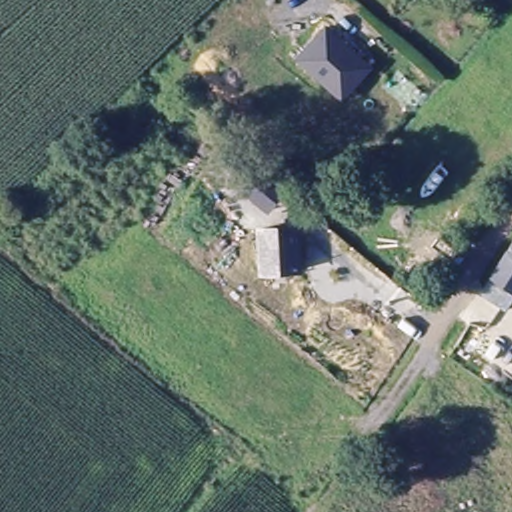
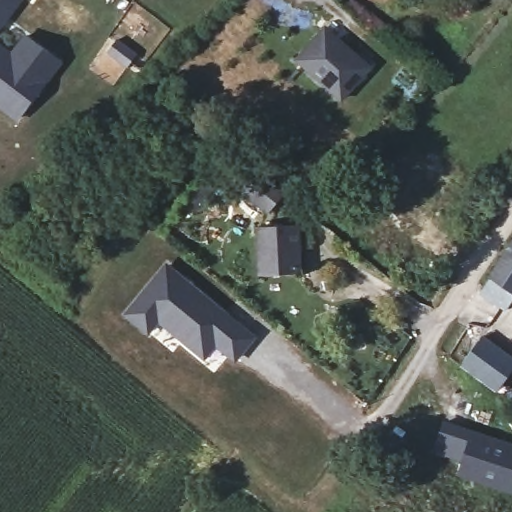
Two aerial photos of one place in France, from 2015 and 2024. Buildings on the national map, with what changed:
new [(25,0),(0,33),(0,0),(25,0)]
unchanged [(373,66),(341,100),(294,58),(325,24),(373,66)]
new [(11,50),(26,32),(65,62),(19,123),(0,110),(0,41),(11,50)]
new [(118,37),(139,52),(113,84),(93,69),(118,37)]
unchanged [(299,226),(303,273),(259,275),(256,226),(299,226)]
unchanged [(481,292),(484,288),(512,247),(512,305),(508,310),(481,292)]
new [(167,260),(259,336),(237,363),(219,349),(207,362),(160,325),(149,337),(122,315),(167,260)]
new [(512,360),(512,372),(496,394),(462,369),(483,340),(512,360)]
new [(496,440),(495,444),(504,447),(506,444),(512,446),(512,492),(458,475),(463,461),(434,451),(444,423),(496,440)]

